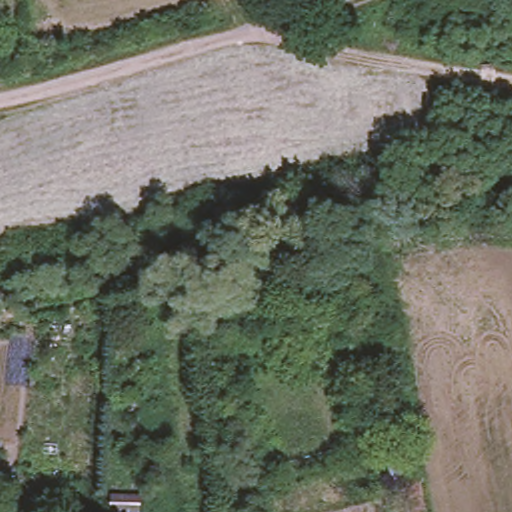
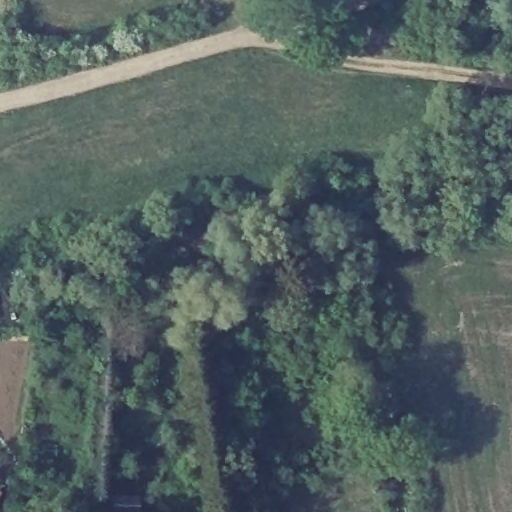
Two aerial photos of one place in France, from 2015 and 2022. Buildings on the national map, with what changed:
unchanged [(143,491),(142,512),(111,512),(112,491),(143,491)]

